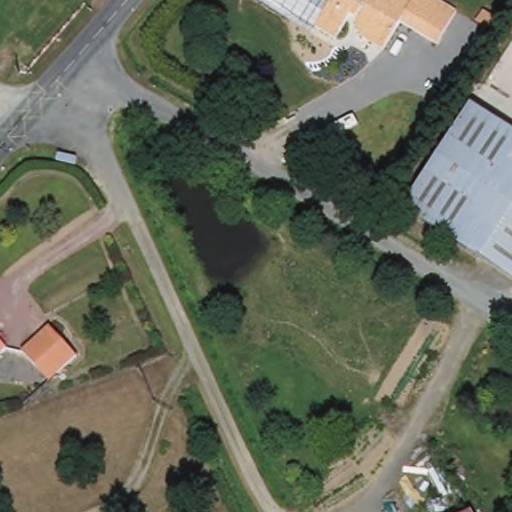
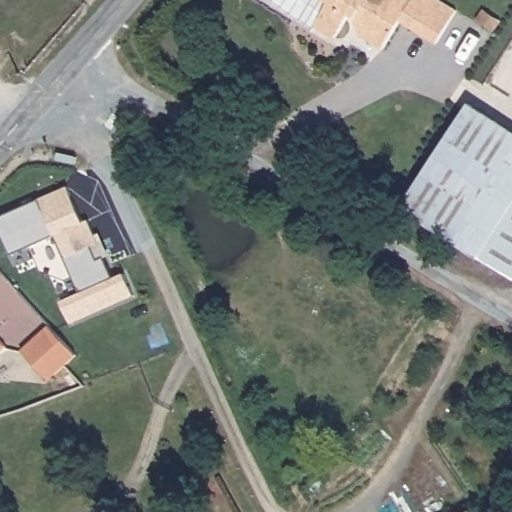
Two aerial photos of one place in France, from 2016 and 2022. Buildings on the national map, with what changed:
unchanged [(270,0),(322,0),(327,3),(313,26),(270,0)]
unchanged [(381,50),(361,37),(357,22),(349,19),(337,40),(313,26),(327,3),(322,0),(411,0),(412,0),(381,50)]
unchanged [(412,0),(439,0),(457,10),(437,43),(434,41),(398,22),(412,0)]
unchanged [(468,101),(512,131),(512,211),(481,261),(400,209),(468,101)]
new [(84,223),(89,221),(95,236),(101,235),(110,257),(105,259),(114,280),(124,275),(133,297),(69,324),(60,302),(79,294),(55,236),(11,255),(0,230),(0,216),(69,187),(84,223)]
unchanged [(512,211),(512,280),(481,261),(512,211)]
unchanged [(39,351),(24,335),(47,315),(75,346),(62,358),(52,366),(39,351)]
unchanged [(2,352),(0,354),(0,350),(2,352)]
unchanged [(467,512),(470,510),(471,512),(467,512)]

